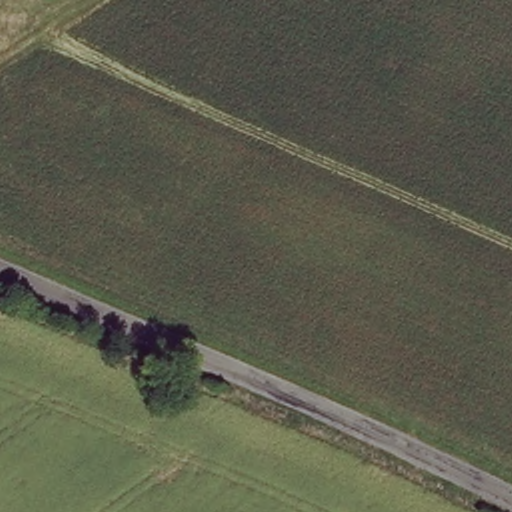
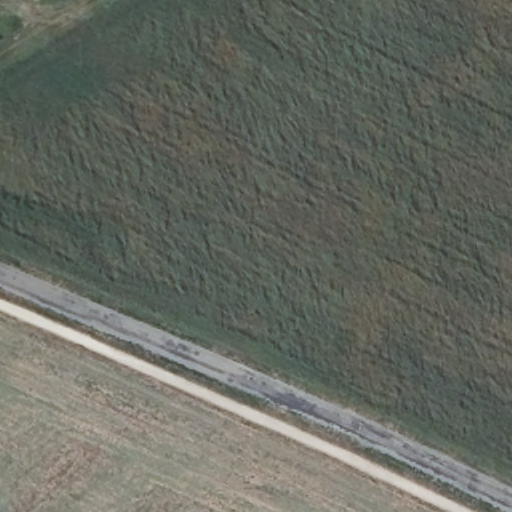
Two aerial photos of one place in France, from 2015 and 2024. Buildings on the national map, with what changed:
[]

